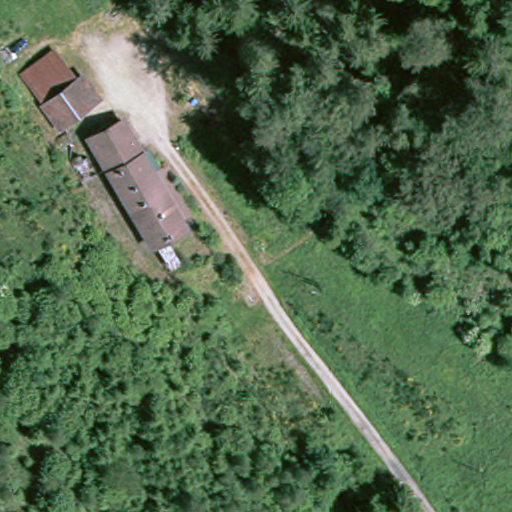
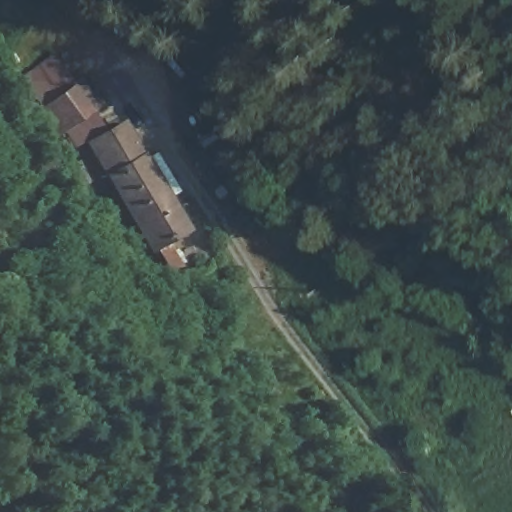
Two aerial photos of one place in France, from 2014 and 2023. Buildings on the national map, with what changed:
unchanged [(52,55),(74,85),(43,106),(22,77),(52,55)]
unchanged [(64,131),(46,110),(81,85),(96,108),(64,131)]
unchanged [(189,233),(157,252),(93,149),(127,129),(189,233)]

